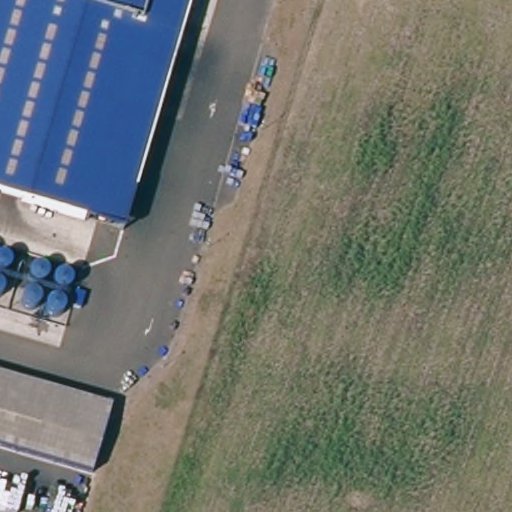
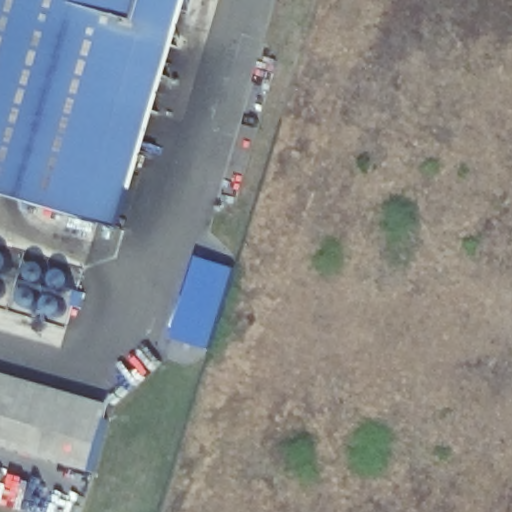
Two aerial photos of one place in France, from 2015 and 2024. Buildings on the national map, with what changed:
unchanged [(182,24),(167,71),(120,227),(0,191),(0,0),(189,0),(182,24)]
new [(235,269),(211,350),(175,339),(199,260),(235,269)]
unchanged [(108,427),(98,461),(96,460),(0,431),(0,373),(114,408),(108,427)]

